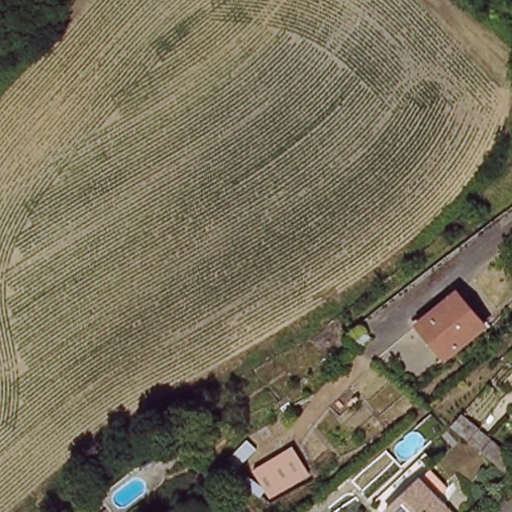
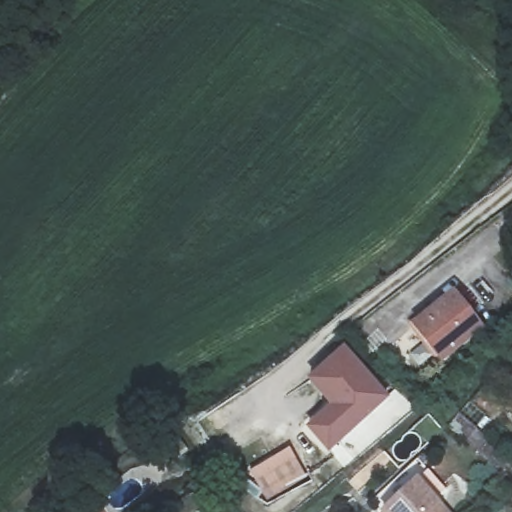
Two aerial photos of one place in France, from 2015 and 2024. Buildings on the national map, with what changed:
unchanged [(416,329),(453,295),(481,324),(445,359),(416,329)]
new [(312,426),(321,418),(336,404),(313,379),(346,349),(389,396),(341,439),(331,448),(312,426)]
unchanged [(291,444),(310,479),(273,499),(254,464),(291,444)]
unchanged [(450,512),(384,512),(411,479),(450,512)]

